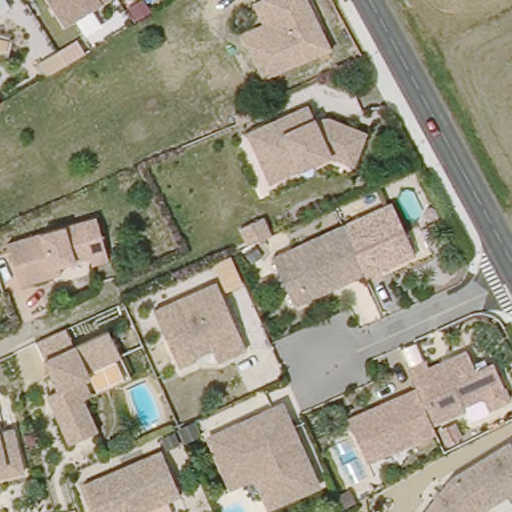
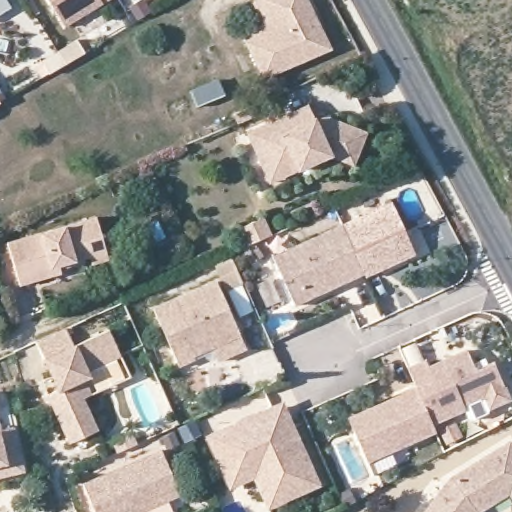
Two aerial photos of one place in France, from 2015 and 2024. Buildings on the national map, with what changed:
unchanged [(68,26),(51,0),(110,0),(68,26)]
unchanged [(334,50),(266,80),(250,43),(246,34),(268,24),(258,2),(262,0),(311,0),(334,50)]
unchanged [(251,146),(245,132),(259,126),(306,105),(312,119),(328,118),(366,133),(353,165),(329,156),(269,183),(261,167),(251,146)]
unchanged [(365,272),(363,269),(340,221),(390,198),(415,249),(391,260),(380,265),(365,272)]
unchanged [(264,216),(271,234),(248,245),(240,227),(264,216)]
unchanged [(18,284),(6,242),(96,219),(108,261),(91,265),(88,258),(58,266),(60,273),(53,275),(18,284)]
unchanged [(305,296),(294,301),(280,271),(271,253),(340,221),(363,269),(348,276),(327,286),(305,296)]
unchanged [(195,360),(179,367),(153,310),(215,282),(240,335),(211,348),(193,356),(195,360)]
unchanged [(50,397),(61,392),(46,360),(110,331),(123,357),(88,373),(86,380),(93,396),(85,400),(100,432),(73,445),(50,397)]
unchanged [(489,407),(482,394),(462,405),(465,409),(432,425),(414,390),(405,371),(422,362),(425,368),(463,349),(473,369),(494,358),(507,382),(512,393),(512,396),(489,407)]
unchanged [(133,378),(93,396),(86,380),(88,373),(123,357),(133,378)]
unchanged [(437,433),(407,448),(370,467),(348,423),(370,412),(399,397),(414,390),(432,425),(437,433)]
unchanged [(209,434),(274,407),(283,403),(299,440),(319,484),(284,499),(281,494),(266,500),(255,474),(231,484),(220,458),(209,434)]
unchanged [(20,453),(25,473),(10,476),(0,479),(0,432),(14,428),(20,453)]
unchanged [(115,441),(133,433),(138,445),(120,453),(115,441)]
unchanged [(505,442),(512,453),(512,497),(508,491),(477,512),(426,512),(448,480),(505,442)]
unchanged [(178,496),(165,501),(170,512),(92,512),(80,485),(159,451),(178,496)]

